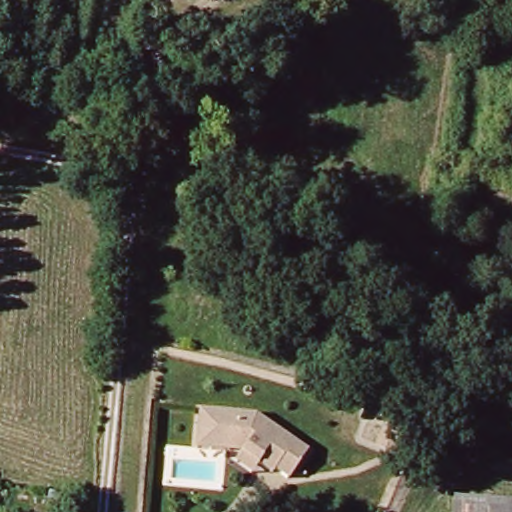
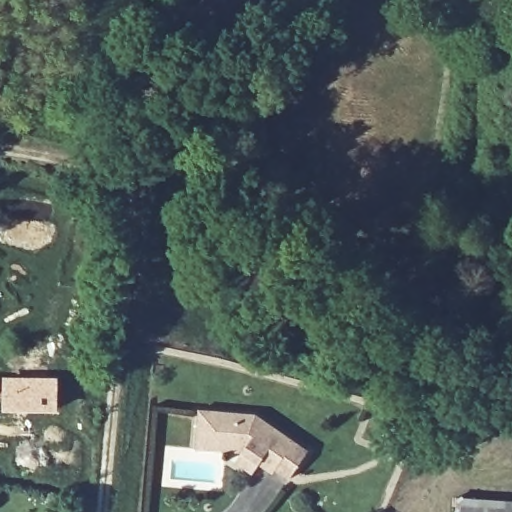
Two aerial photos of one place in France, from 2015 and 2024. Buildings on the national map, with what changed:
new [(2,376),(58,377),(57,412),(2,411),(2,376)]
unchanged [(248,470),(258,461),(210,455),(215,417),(261,422),(319,457),(302,488),(272,470),(266,481),(248,470)]
unchanged [(512,507),(512,512),(454,512),(455,502),(512,507)]

